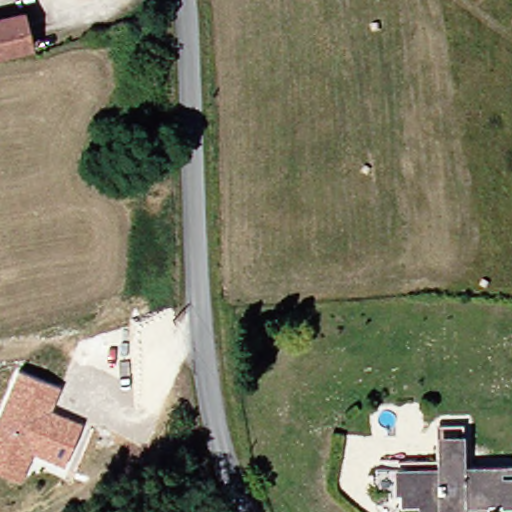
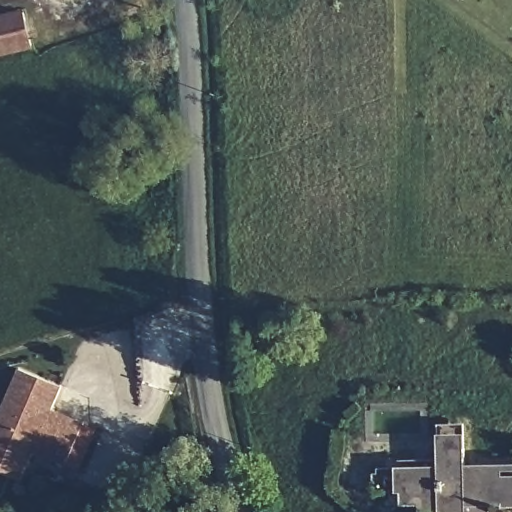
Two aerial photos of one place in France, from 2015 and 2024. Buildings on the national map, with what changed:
unchanged [(32,12),(42,49),(0,58),(0,20),(32,12)]
unchanged [(115,141),(119,145),(121,151),(120,157),(116,161),(110,163),(104,161),(100,157),(98,151),(100,145),(108,140),(115,141)]
unchanged [(17,370),(61,388),(51,411),(82,425),(63,467),(32,453),(20,481),(0,473),(0,411),(17,370)]
unchanged [(408,505),(408,492),(402,492),(402,467),(445,466),(445,448),(444,436),(470,435),(470,447),(470,466),(512,465),(512,507),(495,506),(495,512),(427,512),(427,505),(408,505)]

